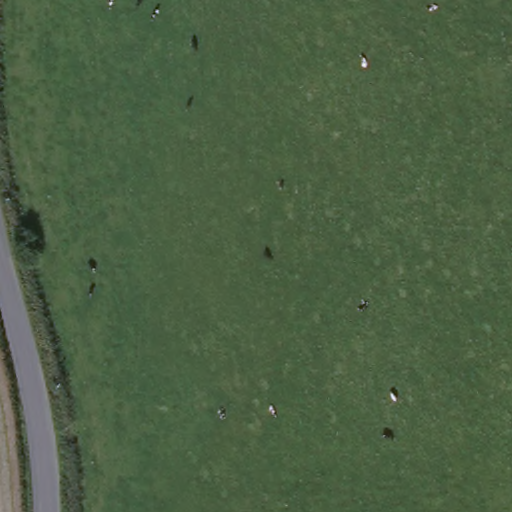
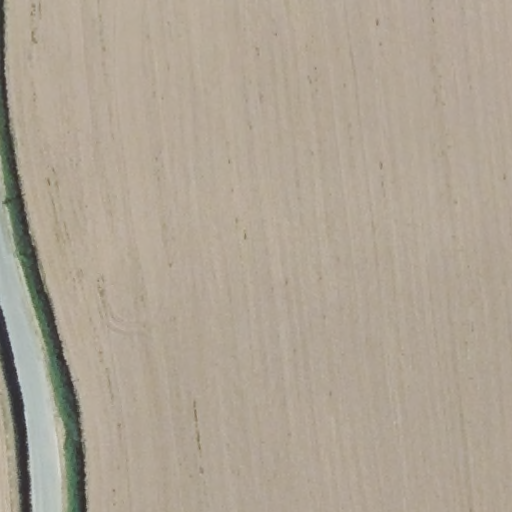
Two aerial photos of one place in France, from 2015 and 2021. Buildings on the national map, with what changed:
[]

